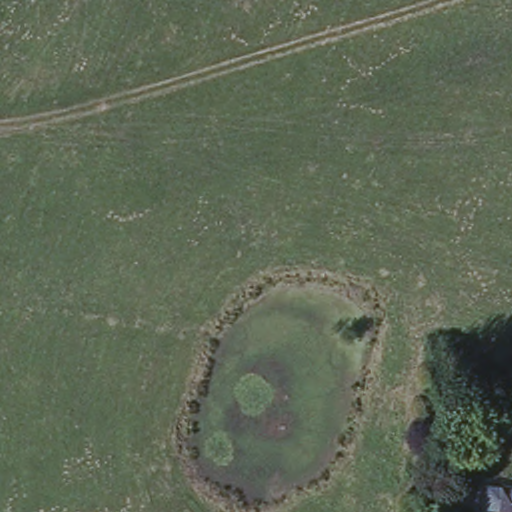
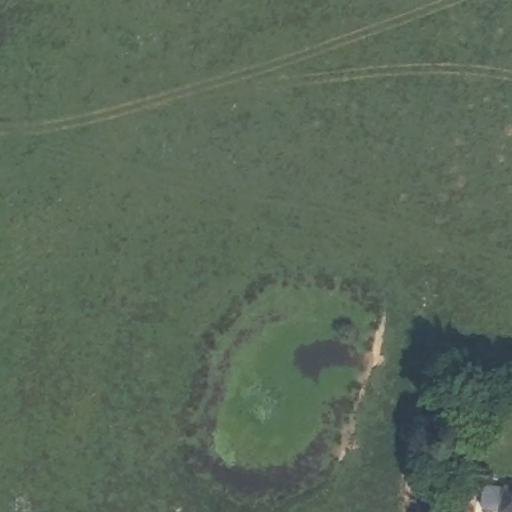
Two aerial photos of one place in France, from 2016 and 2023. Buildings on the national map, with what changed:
unchanged [(512,512),(480,512),(485,484),(512,490),(512,512)]

